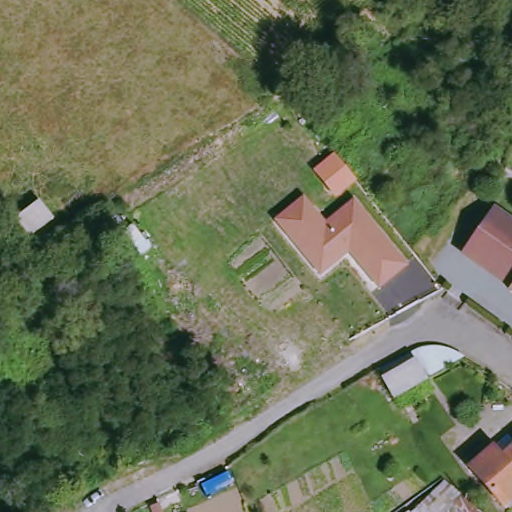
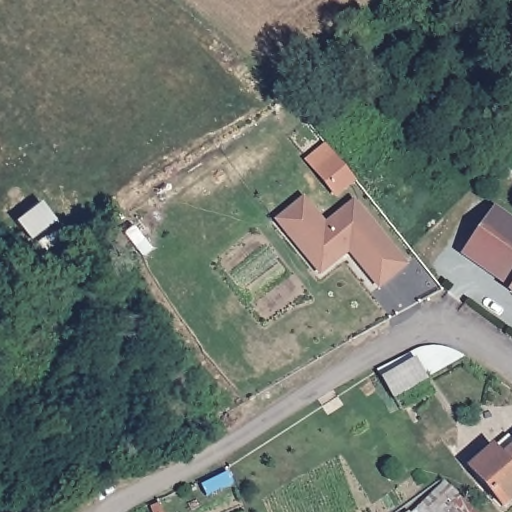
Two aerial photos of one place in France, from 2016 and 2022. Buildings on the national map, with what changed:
unchanged [(336,202),(313,173),(334,156),(357,184),(336,202)]
unchanged [(276,221),(305,197),(326,222),(356,200),(409,264),(381,289),(350,253),(321,278),(276,221)]
unchanged [(512,217),(512,285),(511,286),(469,251),(464,248),(474,237),(499,206),(512,217)]
unchanged [(512,291),(509,288),(511,286),(512,285),(512,291)]
unchanged [(398,402),(386,373),(440,353),(456,364),(398,402)]
unchanged [(512,502),(504,509),(472,473),(495,451),(503,459),(512,451),(512,502)]

